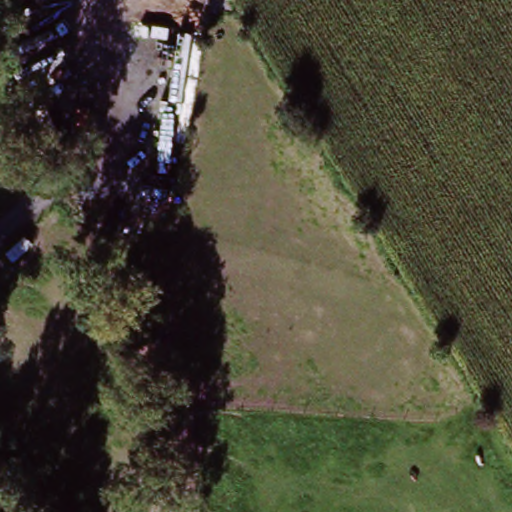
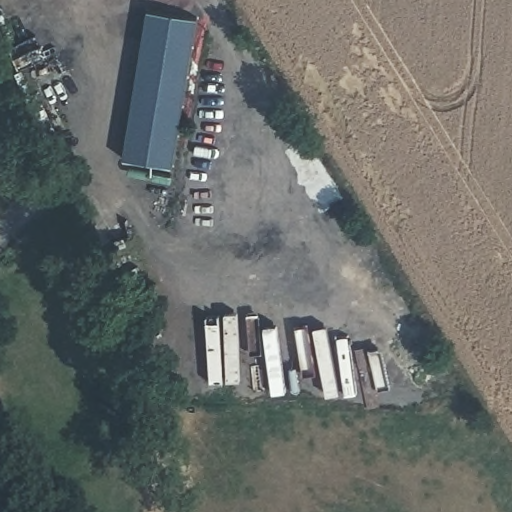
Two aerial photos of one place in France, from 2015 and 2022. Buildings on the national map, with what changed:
new [(148,10),(197,17),(173,167),(124,159),(148,10)]

